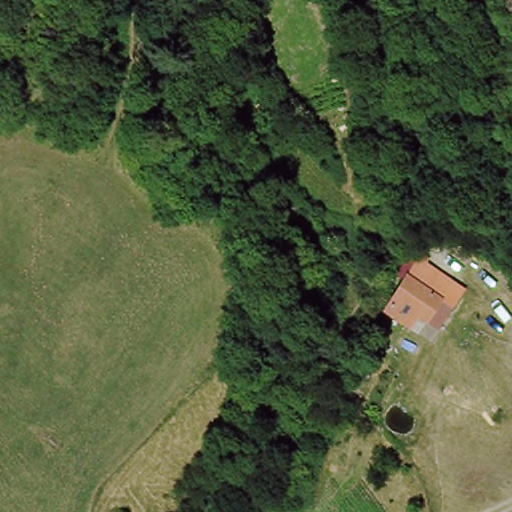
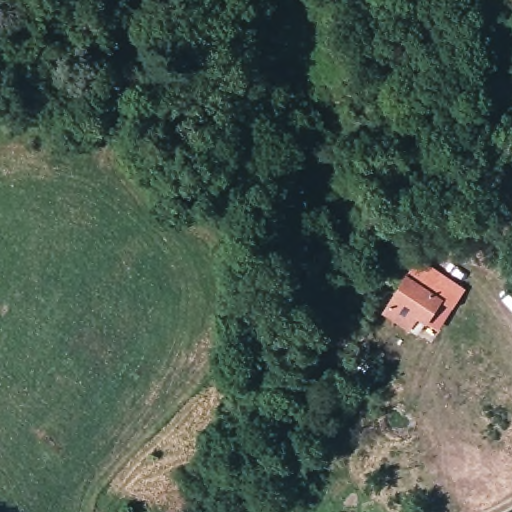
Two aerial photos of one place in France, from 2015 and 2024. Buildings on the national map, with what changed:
unchanged [(464,290),(436,333),(416,321),(411,330),(378,313),(416,256),(464,290)]

